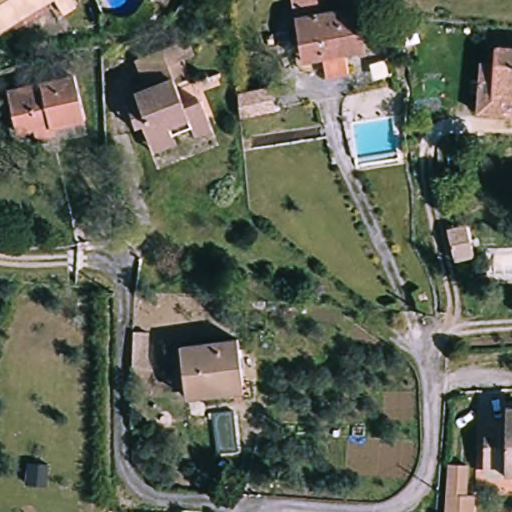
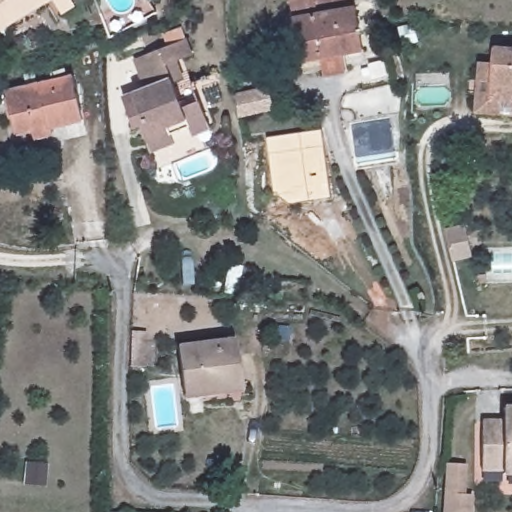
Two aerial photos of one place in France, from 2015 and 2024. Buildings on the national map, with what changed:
unchanged [(0,30),(0,0),(77,0),(78,1),(66,9),(60,0),(19,25),(15,20),(0,30)]
unchanged [(303,55),(297,13),(296,0),(360,0),(360,3),(367,47),(347,50),(348,61),(305,65),(303,55)]
unchanged [(155,147),(152,140),(145,118),(137,121),(132,108),(141,104),(138,92),(154,87),(145,58),(194,40),(199,56),(175,65),(190,104),(205,99),(212,120),(214,127),(155,147)]
unchanged [(497,45),(512,45),(512,100),(497,100),(497,63),(497,45)]
unchanged [(480,114),(483,62),(497,63),(497,100),(512,100),(512,115),(480,114)]
unchanged [(37,130),(34,119),(21,123),(9,89),(72,70),(85,112),(55,120),(57,125),(37,130)]
unchanged [(267,83),(268,105),(237,107),(235,86),(267,83)]
unchanged [(253,136),(239,139),(238,130),(238,125),(252,122),(253,136)]
new [(290,203),(273,189),(265,137),(321,129),(331,197),(290,203)]
new [(465,232),(471,261),(452,265),(445,236),(465,232)]
unchanged [(189,388),(183,346),(243,337),(249,387),(227,390),(190,395),(189,388)]
unchanged [(130,340),(147,341),(146,372),(130,372),(130,340)]
unchanged [(484,476),(485,467),(485,419),(512,420),(512,477),(484,476)]
unchanged [(464,466),(462,496),(472,499),(471,512),(446,512),(447,466),(464,466)]

